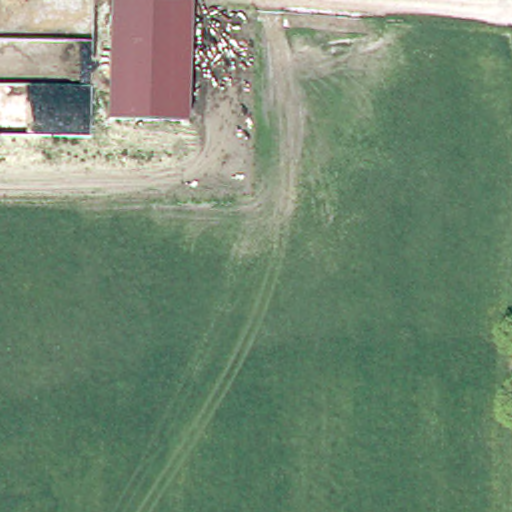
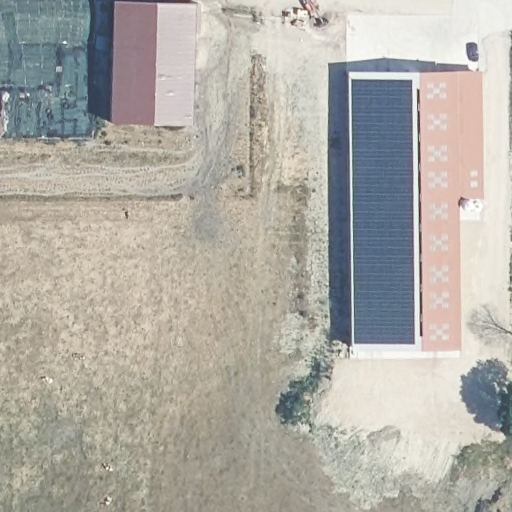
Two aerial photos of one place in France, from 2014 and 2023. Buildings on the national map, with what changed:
unchanged [(190,2),(186,124),(107,121),(110,0),(190,2)]
new [(452,73),(452,74),(453,195),(454,345),(347,345),(345,74),(452,73)]
new [(478,74),(479,195),(453,195),(452,74),(478,74)]

